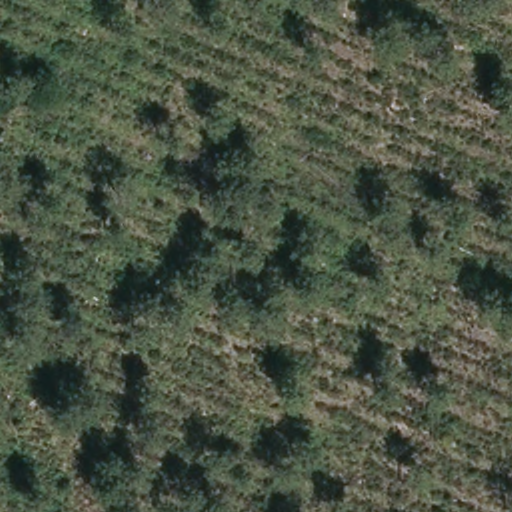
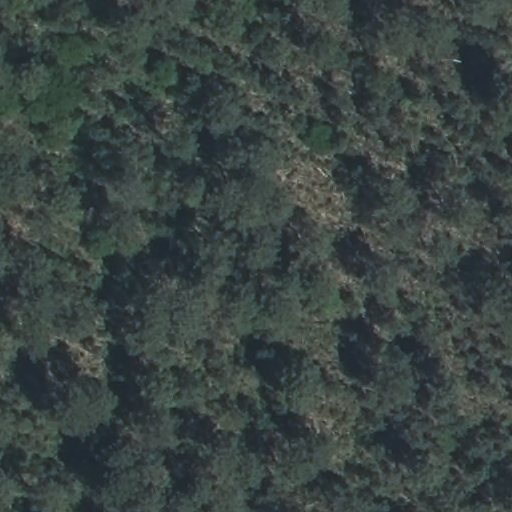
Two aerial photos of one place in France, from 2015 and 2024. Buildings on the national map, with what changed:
[]

